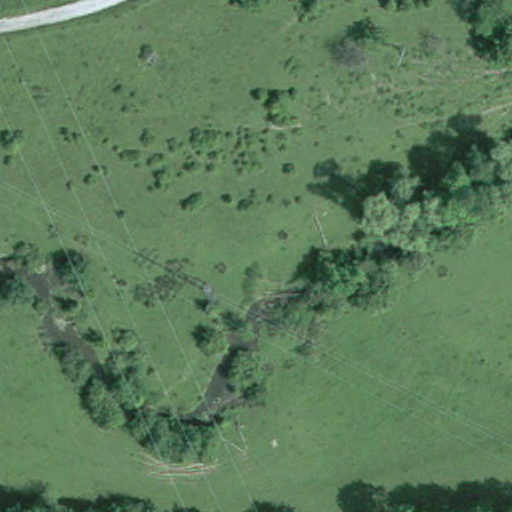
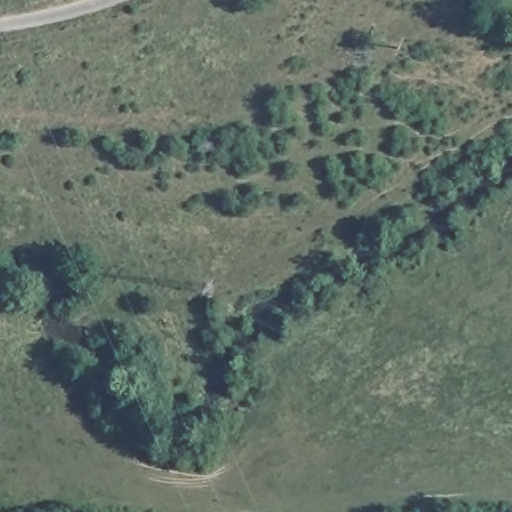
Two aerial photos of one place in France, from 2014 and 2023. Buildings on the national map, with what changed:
unchanged [(260,0),(265,0),(262,2),(260,0)]

